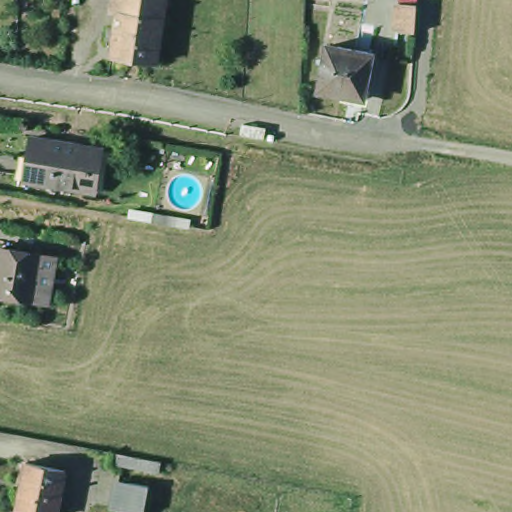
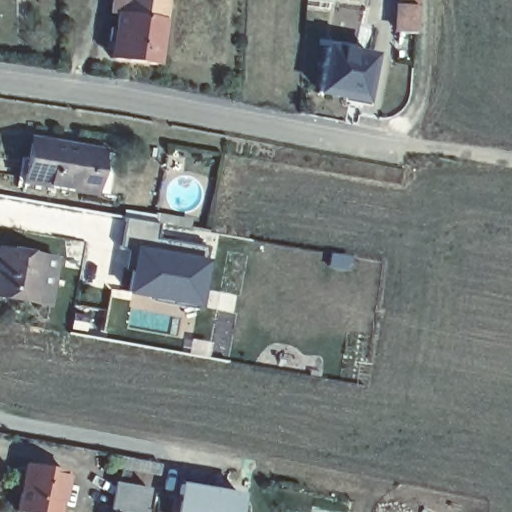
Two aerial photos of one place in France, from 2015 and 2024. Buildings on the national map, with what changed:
unchanged [(171,10),(165,9),(164,22),(119,15),(121,0),(166,0),(166,3),(172,4),(171,10)]
unchanged [(394,30),(395,1),(412,3),(410,31),(394,30)]
unchanged [(164,22),(158,66),(113,60),(115,42),(109,41),(110,30),(117,31),(119,15),(164,22)]
unchanged [(320,94),(329,50),(340,51),(340,50),(353,53),(352,54),(373,58),(365,103),(320,94)]
unchanged [(91,189),(23,178),(30,136),(98,148),(91,189)]
new [(161,222),(158,240),(207,246),(205,258),(214,258),(205,306),(129,293),(133,271),(127,269),(130,249),(123,248),(127,217),(161,222)]
unchanged [(34,298),(33,301),(12,297),(0,295),(0,246),(2,247),(41,254),(40,257),(54,259),(47,300),(34,298)]
unchanged [(106,460),(107,449),(157,459),(156,470),(106,460)]
unchanged [(58,512),(15,512),(24,464),(65,473),(58,512)]
unchanged [(148,512),(116,512),(124,473),(154,479),(148,512)]
unchanged [(177,480),(239,490),(235,512),(172,512),(177,480)]

